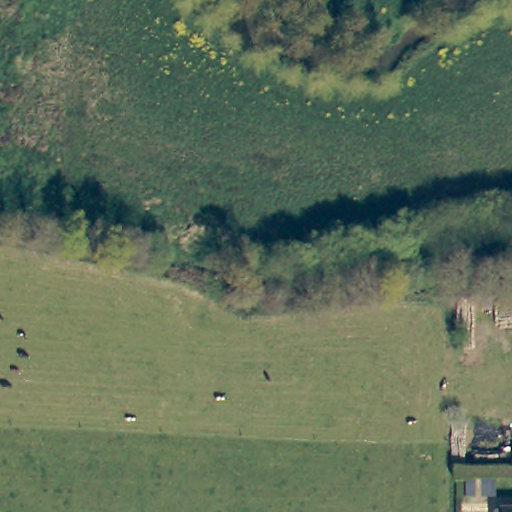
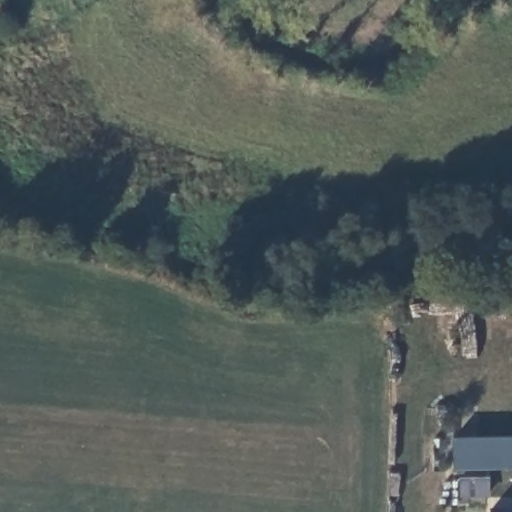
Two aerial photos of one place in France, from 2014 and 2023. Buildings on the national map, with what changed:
new [(452,471),(452,439),(505,437),(506,447),(512,447),(512,468),(452,471)]
unchanged [(512,511),(512,512),(492,512),(512,511)]

